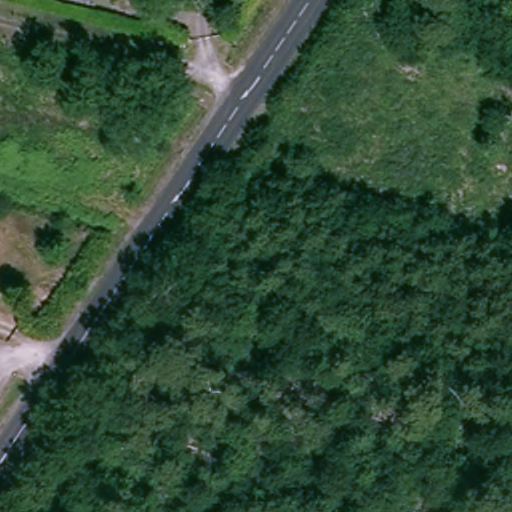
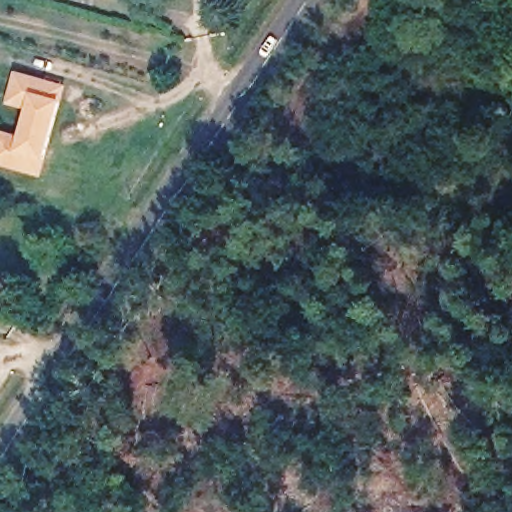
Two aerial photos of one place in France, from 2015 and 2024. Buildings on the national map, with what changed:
new [(69,86),(64,104),(49,162),(44,177),(0,165),(0,136),(2,129),(24,134),(31,108),(9,105),(19,70),(69,86)]

